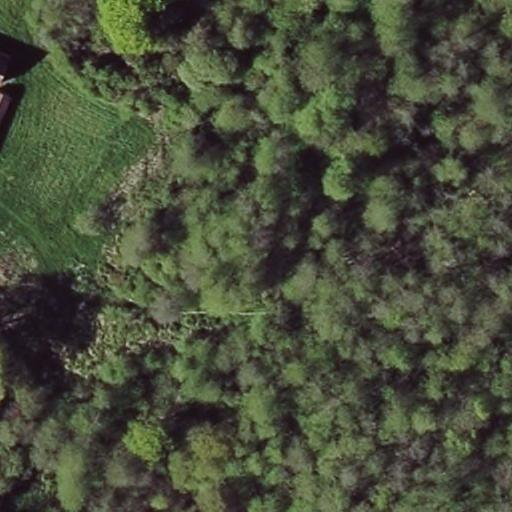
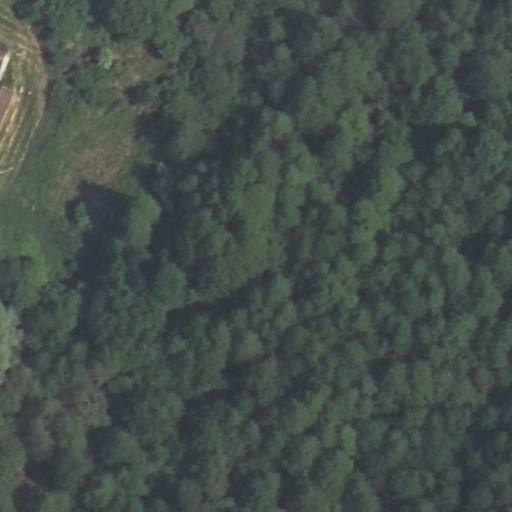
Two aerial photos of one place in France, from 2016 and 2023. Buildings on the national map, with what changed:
unchanged [(0,86),(0,53),(17,60),(5,88),(0,86)]
unchanged [(0,99),(13,105),(0,134),(0,99)]

